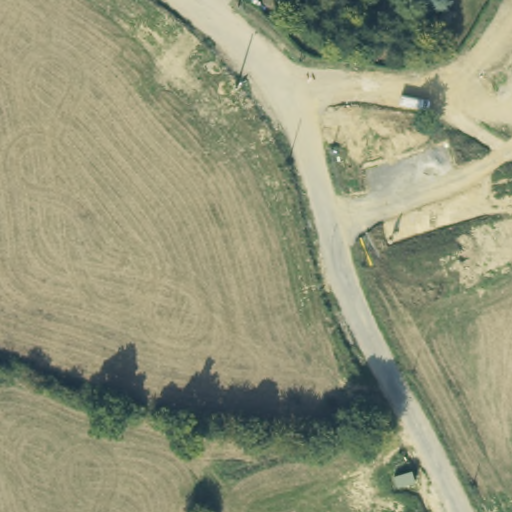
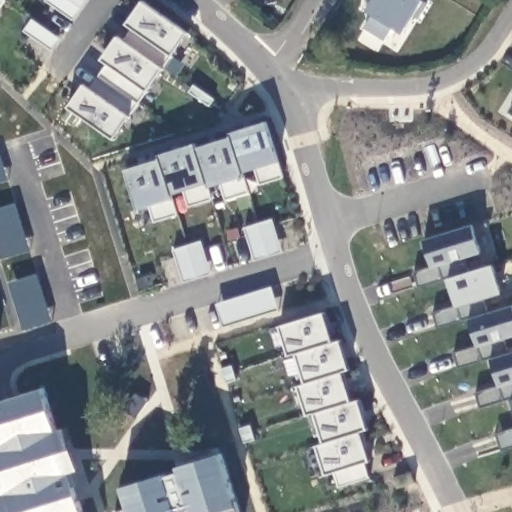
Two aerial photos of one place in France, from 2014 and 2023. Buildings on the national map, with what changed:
new [(0,7),(0,0),(4,0),(5,1),(0,7)]
new [(418,0),(427,4),(417,20),(413,18),(405,35),(391,28),(384,40),(365,30),(372,15),(368,13),(375,0),(419,0),(418,0)]
new [(113,140),(66,108),(84,84),(90,89),(109,64),(100,58),(117,37),(124,42),(133,29),(125,23),(142,1),(188,32),(113,140)]
unchanged [(509,112),(512,107),(512,114),(509,112)]
new [(259,185),(255,172),(245,174),(249,194),(225,199),(221,186),(210,189),(212,200),(188,207),(184,192),(172,196),(177,215),(152,221),(149,207),(137,211),(125,169),(160,159),(159,153),(194,143),(195,148),(230,139),(228,133),(269,121),(279,162),(285,178),(259,185)]
new [(432,268),(424,239),(472,225),(480,253),(464,258),(467,271),(493,265),(501,297),(481,300),(485,313),(512,304),(512,336),(503,339),(508,353),(512,352),(512,400),(511,399),(479,409),(475,393),(499,386),(490,360),(458,368),(454,351),(477,346),(469,319),(438,328),(433,312),(454,306),(448,282),(420,288),(414,272),(432,268)]
new [(337,488),(332,471),(324,474),(315,446),(322,444),(314,415),(305,417),(297,385),(303,383),(294,354),(287,356),(279,325),(323,313),(331,341),(339,338),(349,369),(341,372),(350,400),(356,398),(366,429),(360,432),(368,461),(362,463),(367,479),(337,488)]
new [(56,428),(66,426),(80,471),(73,473),(84,512),(1,512),(0,508),(0,401),(45,387),(56,428)]
new [(501,448),(496,435),(512,429),(512,445),(501,448)]
new [(121,486),(222,457),(234,498),(239,512),(115,512),(129,509),(121,486)]

